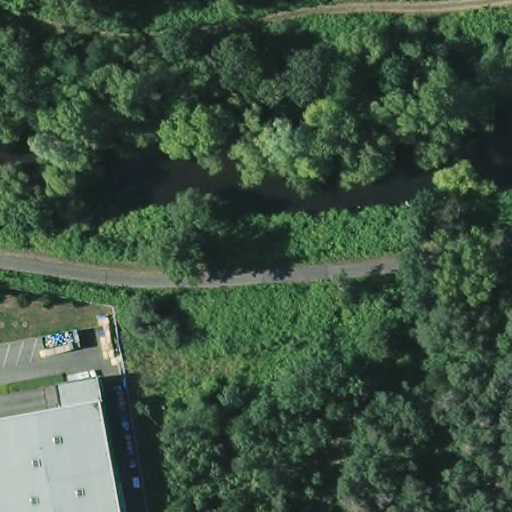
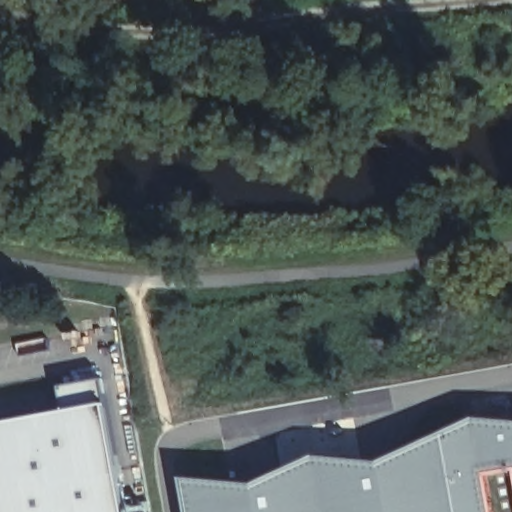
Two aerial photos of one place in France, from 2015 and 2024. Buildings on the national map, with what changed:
unchanged [(63,386),(106,378),(130,512),(0,512),(0,424),(69,410),(63,386)]
new [(257,482),(317,454),(385,460),(477,416),(512,419),(512,512),(191,512),(185,476),(257,482)]

